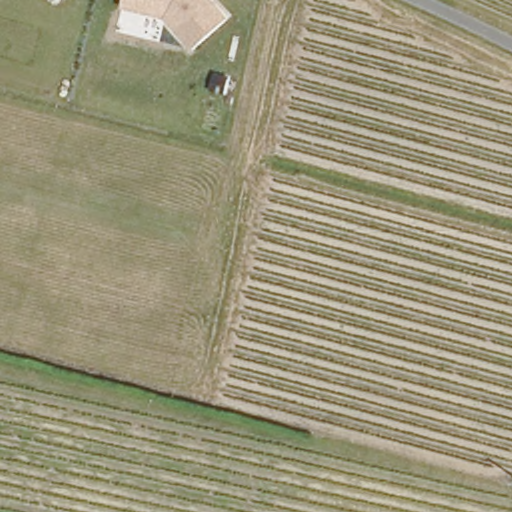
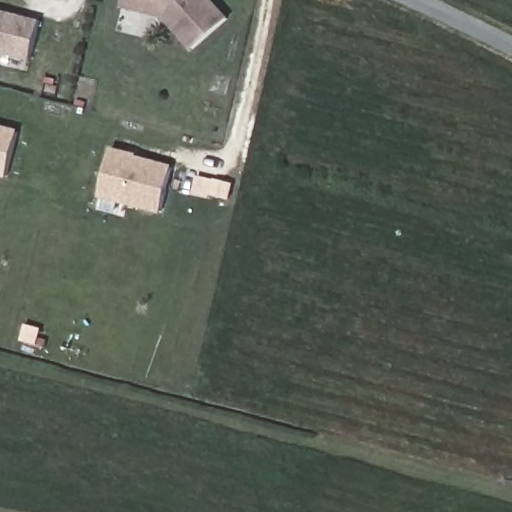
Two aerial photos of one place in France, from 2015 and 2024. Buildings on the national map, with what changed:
unchanged [(168,20),(123,7),(126,0),(216,0),(230,16),(193,50),(168,20)]
unchanged [(34,56),(0,47),(0,5),(45,17),(34,56)]
new [(0,124),(11,127),(9,133),(16,135),(5,180),(0,178),(0,124)]
new [(171,163),(157,214),(98,198),(111,147),(171,163)]

